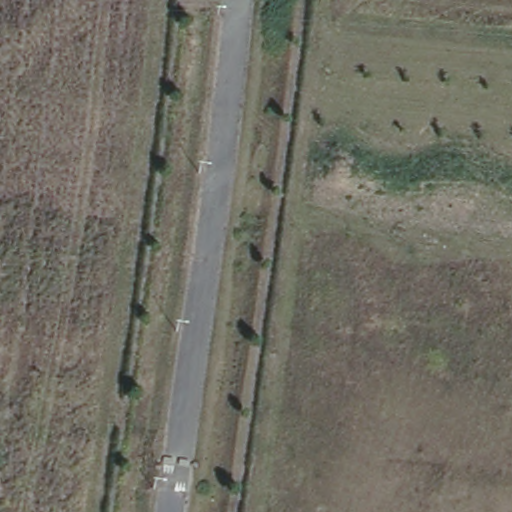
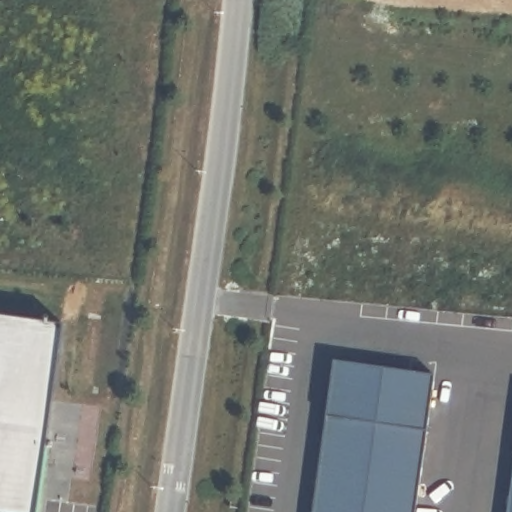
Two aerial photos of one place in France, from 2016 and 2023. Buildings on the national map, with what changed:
new [(57,334),(34,512),(0,512),(0,325),(57,334)]
new [(414,512),(306,512),(326,365),(431,383),(414,512)]
new [(512,437),(512,512),(502,512),(512,437)]

